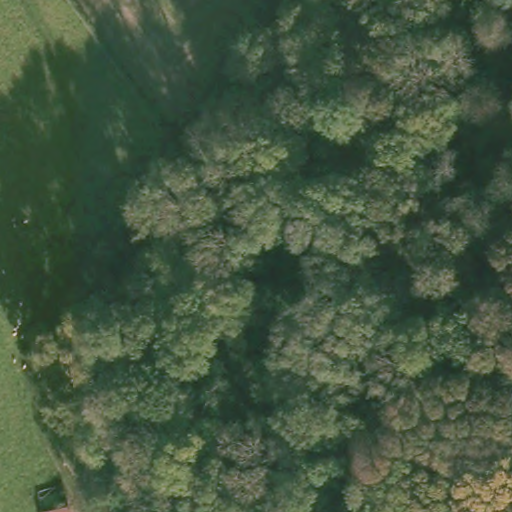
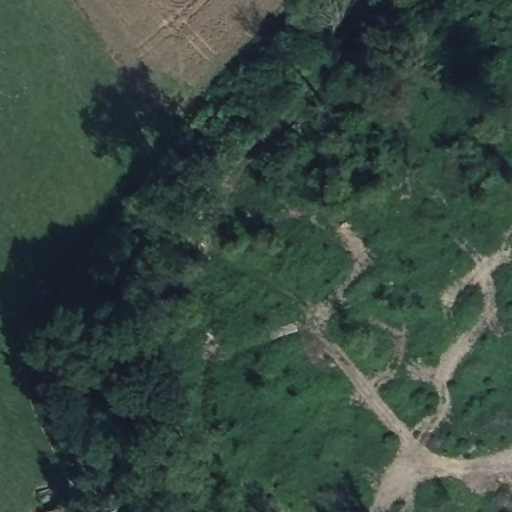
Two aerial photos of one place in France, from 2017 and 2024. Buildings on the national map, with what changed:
unchanged [(77,512),(46,512),(76,509),(77,512)]

